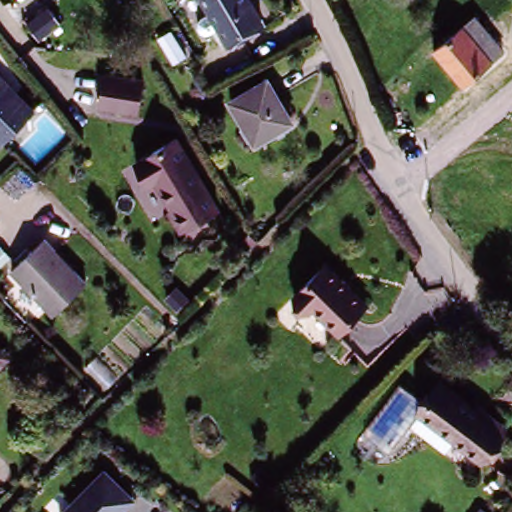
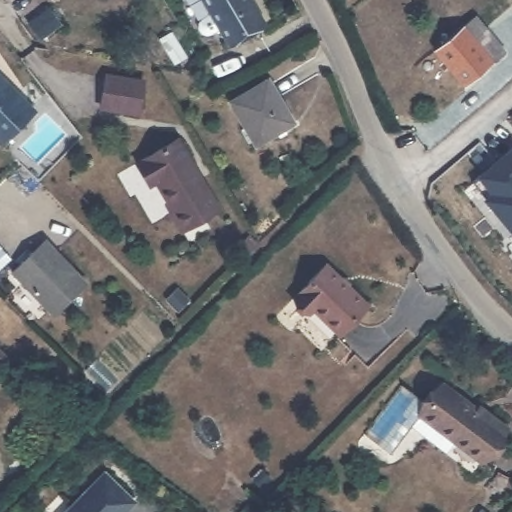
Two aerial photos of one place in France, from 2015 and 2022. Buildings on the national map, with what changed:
unchanged [(232,43),(224,29),(217,33),(211,35),(205,32),(202,27),(203,21),(207,17),(214,13),(207,0),(255,0),(268,22),(232,43)]
unchanged [(462,85),(434,48),(477,12),(506,50),(462,85)]
unchanged [(174,65),(163,44),(175,37),(186,59),(174,65)]
unchanged [(38,110),(6,142),(0,136),(0,72),(38,110)]
unchanged [(137,112),(101,106),(106,75),(142,81),(137,112)]
unchanged [(293,121),(284,126),(287,130),(279,135),(277,130),(255,142),(231,97),(269,76),(293,121)]
unchanged [(219,208),(181,230),(170,212),(173,210),(155,181),(150,184),(137,162),(177,138),(219,208)]
new [(505,215),(491,199),(489,200),(474,184),(482,177),(512,152),(512,228),(503,217),(505,215)]
unchanged [(53,307),(12,265),(46,232),(88,274),(53,307)]
unchanged [(238,247),(250,237),(256,245),(245,255),(238,247)]
unchanged [(0,271),(0,252),(1,251),(10,261),(0,271)]
unchanged [(372,305),(344,334),(318,308),(315,311),(300,296),(331,265),(372,305)]
unchanged [(13,353),(0,366),(0,339),(13,353)]
unchanged [(116,386),(110,392),(97,379),(103,373),(116,386)]
unchanged [(507,425),(485,454),(459,434),(450,445),(418,420),(426,409),(424,407),(446,378),(507,425)]
unchanged [(128,512),(72,512),(104,478),(133,506),(128,512)]
unchanged [(481,508),(486,512),(479,512),(481,508)]

